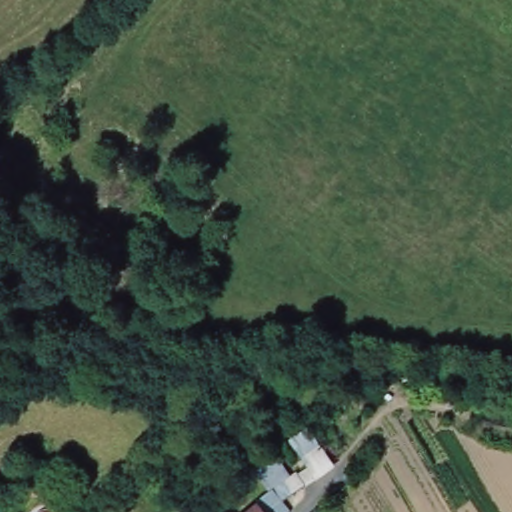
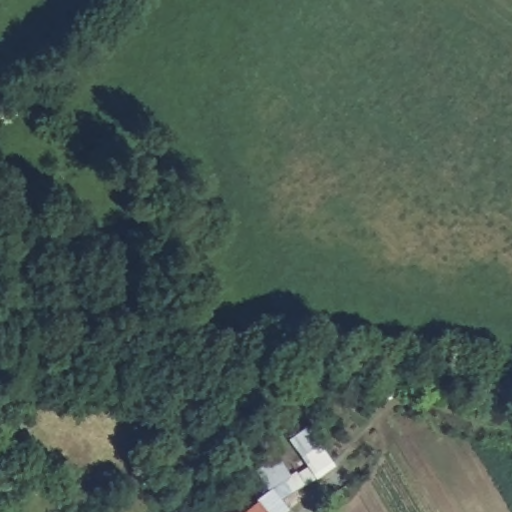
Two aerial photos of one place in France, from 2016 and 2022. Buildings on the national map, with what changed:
unchanged [(307,486),(301,475),(300,475),(298,476),(273,492),(252,465),(275,451),(290,473),(307,462),(288,437),(306,425),(335,468),(307,487),(307,486)]
unchanged [(260,501),(298,476),(300,475),(301,475),(307,486),(307,487),(283,503),(292,512),(247,512),(261,503),(260,501)]

